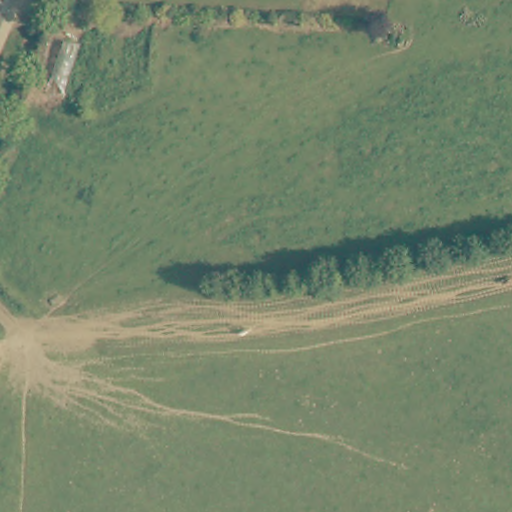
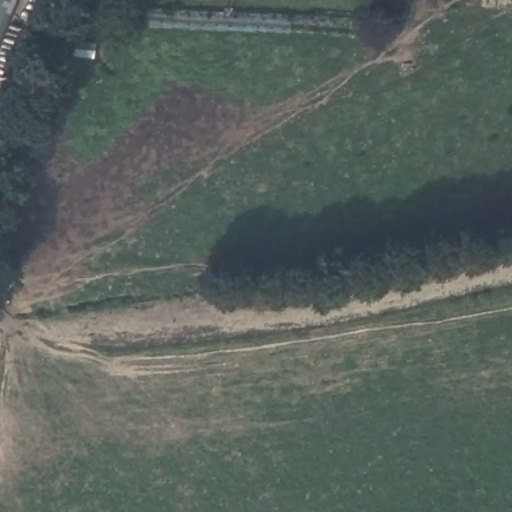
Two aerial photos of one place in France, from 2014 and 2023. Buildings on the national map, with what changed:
unchanged [(0,36),(0,0),(15,0),(0,36)]

